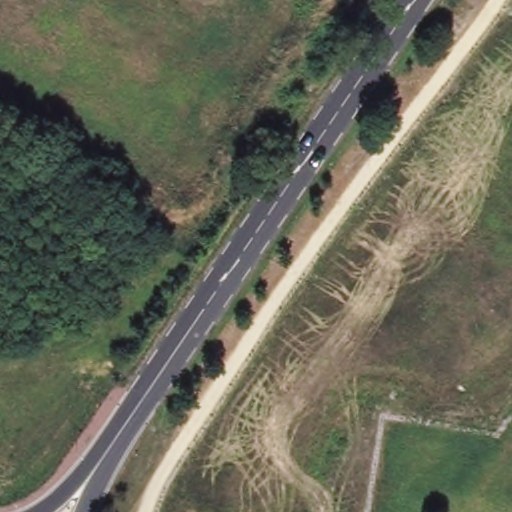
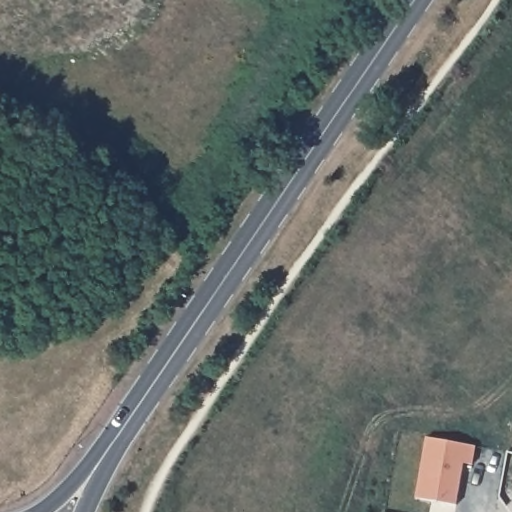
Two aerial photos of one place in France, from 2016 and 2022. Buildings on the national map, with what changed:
new [(428,438),(477,447),(474,465),(465,463),(458,506),(417,498),(428,438)]

